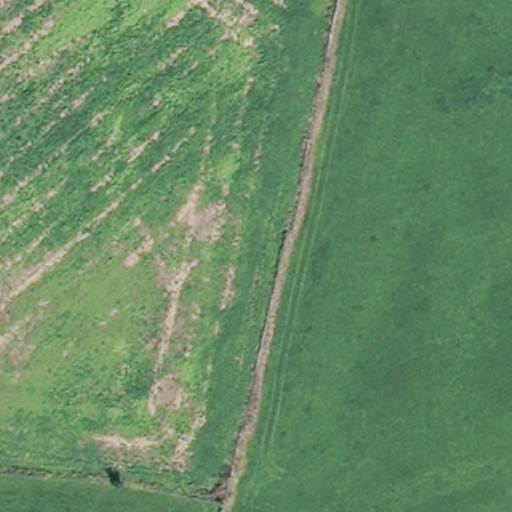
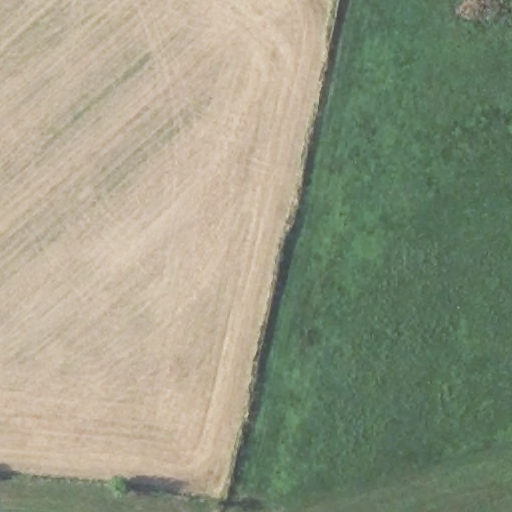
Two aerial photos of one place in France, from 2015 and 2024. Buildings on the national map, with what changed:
[]

